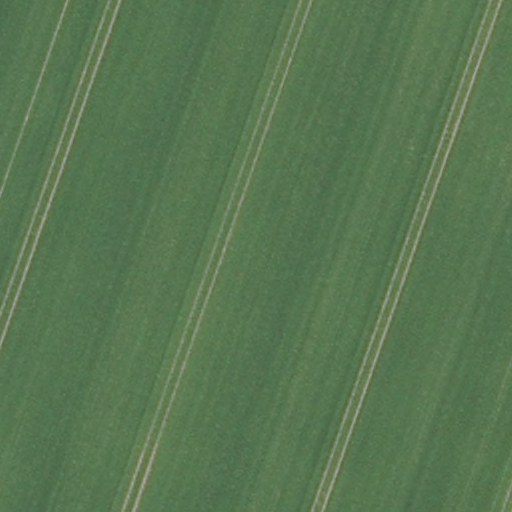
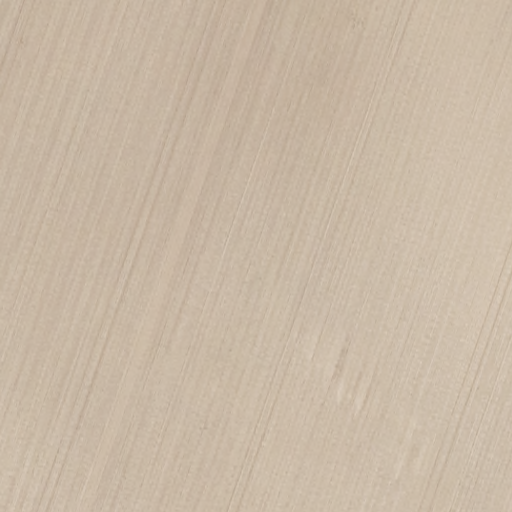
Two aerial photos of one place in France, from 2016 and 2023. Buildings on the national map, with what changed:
[]

